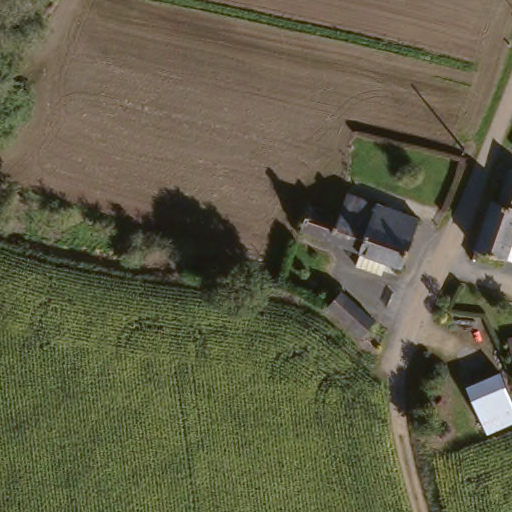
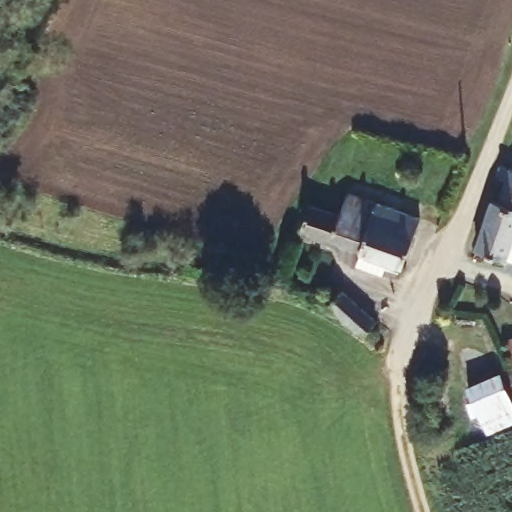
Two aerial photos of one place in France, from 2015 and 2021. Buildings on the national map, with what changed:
unchanged [(479,246),(498,201),(504,201),(511,184),(501,177),(506,166),(512,168),(512,258),(511,261),(479,246)]
unchanged [(354,191),(424,219),(418,237),(374,219),(373,224),(346,212),(354,191)]
unchanged [(403,269),(389,263),(383,275),(358,265),(362,251),(304,227),(309,211),(316,200),(346,212),(373,224),(374,219),(418,237),(403,269)]
unchanged [(383,324),(369,339),(337,304),(344,297),(353,290),(383,324)]
unchanged [(512,424),(490,433),(464,392),(501,374),(512,393),(512,424)]

